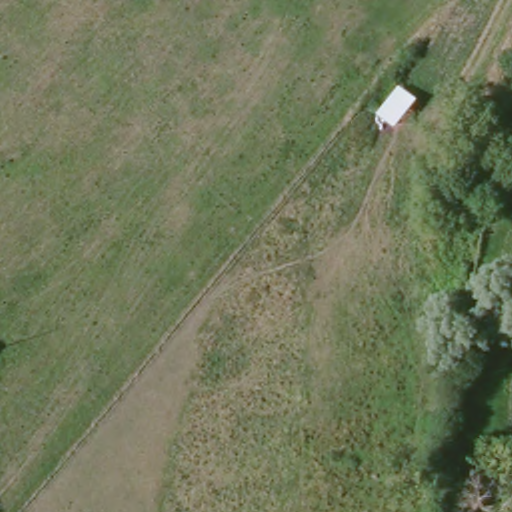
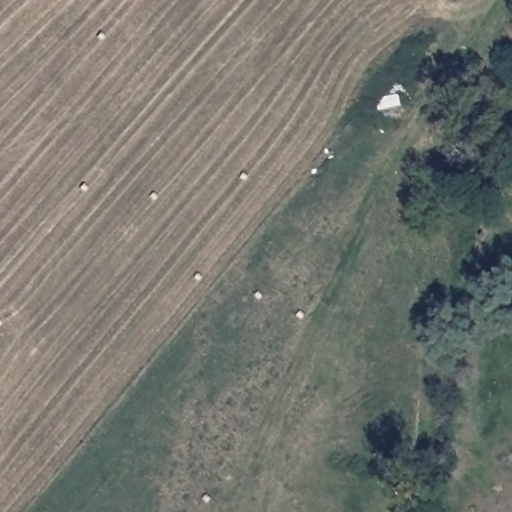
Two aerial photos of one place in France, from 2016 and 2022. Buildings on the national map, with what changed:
[]

